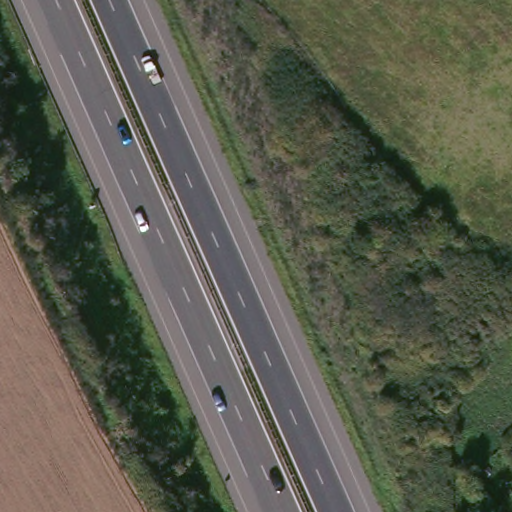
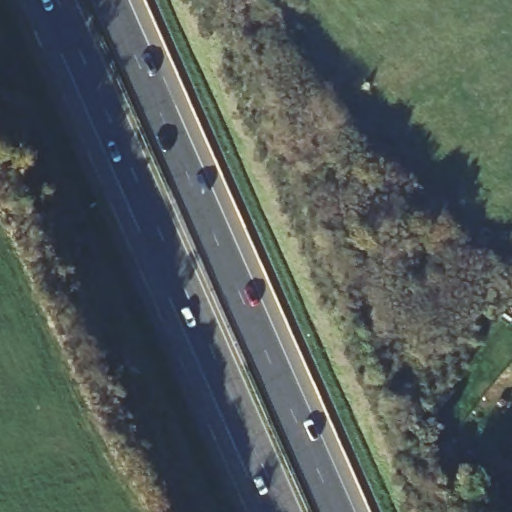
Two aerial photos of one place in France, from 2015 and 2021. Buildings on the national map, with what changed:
[]

